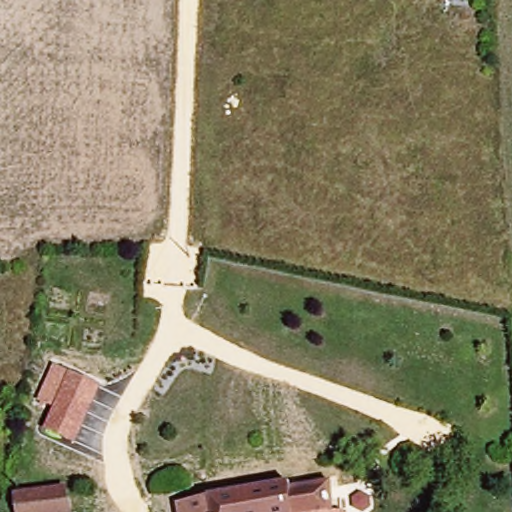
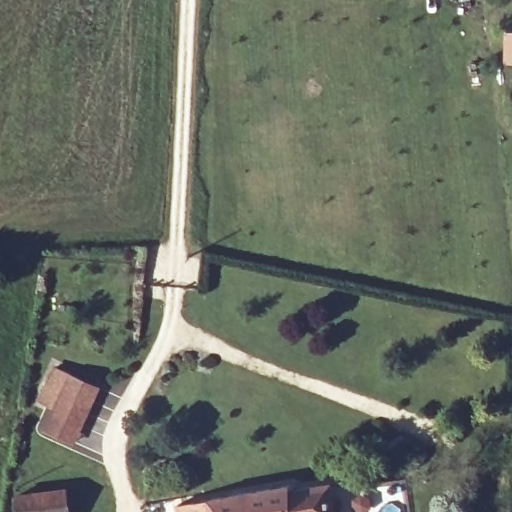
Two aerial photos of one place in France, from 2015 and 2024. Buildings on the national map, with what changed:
new [(503,31),(512,32),(512,63),(503,63),(503,31)]
unchanged [(102,387),(75,443),(44,429),(54,409),(38,403),(55,366),(102,387)]
unchanged [(290,484),(294,491),(330,486),(334,512),(241,512),(239,491),(290,484)]
unchanged [(180,512),(179,499),(239,491),(241,512),(180,512)]
unchanged [(63,512),(19,512),(18,496),(62,492),(63,512)]

